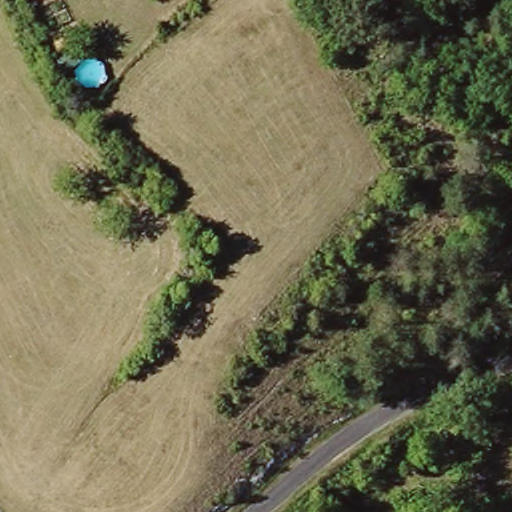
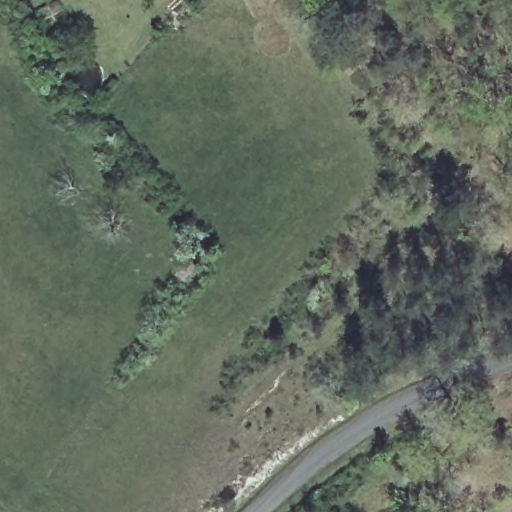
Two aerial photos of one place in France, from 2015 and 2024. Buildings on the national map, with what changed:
unchanged [(505,228),(510,232),(512,235),(512,245),(509,250),(505,252),(500,253),(495,251),(490,248),(488,244),(487,239),(489,234),(492,230),(499,227),(505,228)]

